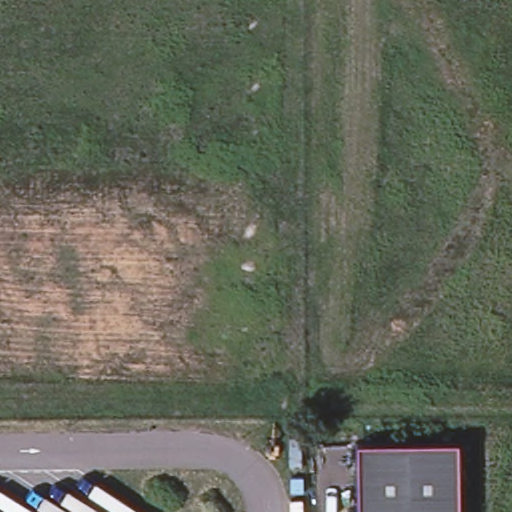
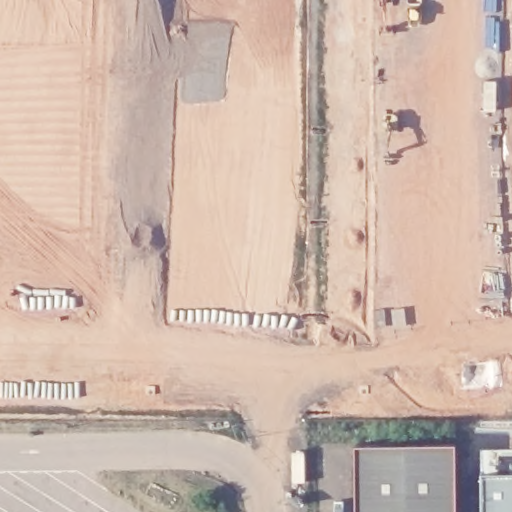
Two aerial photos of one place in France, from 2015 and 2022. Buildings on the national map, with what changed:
unchanged [(456,442),(457,512),(355,512),(355,443),(456,442)]
new [(481,512),(480,451),(512,452),(512,512),(481,512)]

